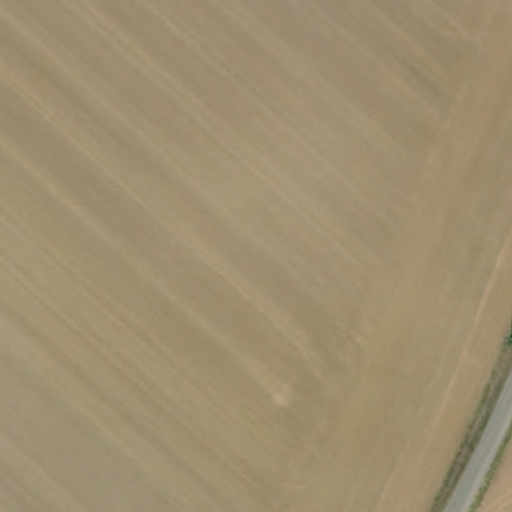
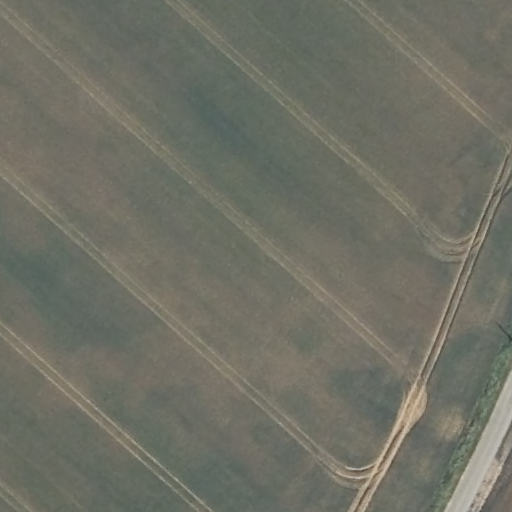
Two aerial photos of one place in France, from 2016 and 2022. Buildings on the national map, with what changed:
[]

